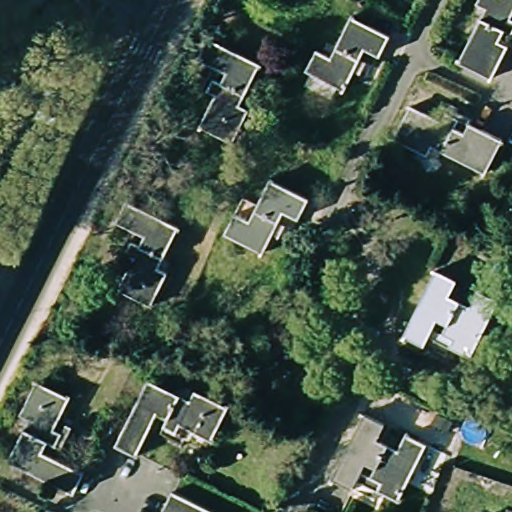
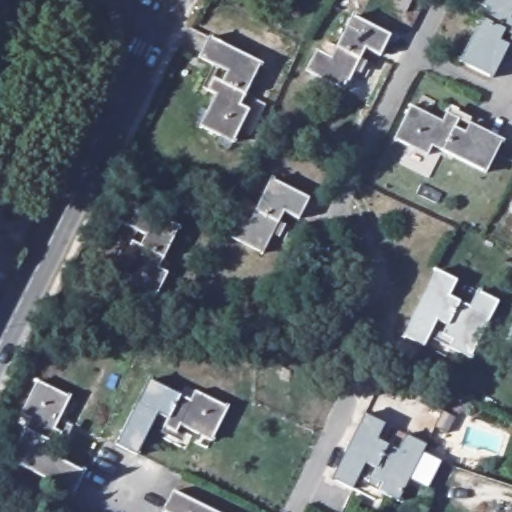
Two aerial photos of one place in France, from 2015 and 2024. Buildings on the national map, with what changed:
unchanged [(488,11),(478,6),(481,0),(512,0),(512,21),(511,23),(512,24),(512,36),(507,33),(501,44),(509,48),(493,82),(461,65),(488,11)]
unchanged [(317,50),(337,59),(358,17),(391,34),(381,55),(367,48),(345,90),(307,71),(317,50)]
unchanged [(262,62),(242,103),(251,108),(235,140),(202,124),(217,94),(209,89),(215,78),(222,82),(228,70),(200,56),(210,36),(262,62)]
unchanged [(503,141),(487,172),(434,146),(430,155),(397,139),(413,106),(445,122),(449,113),(459,118),(455,126),(465,132),(469,123),(503,141)]
unchanged [(236,214),(254,223),(276,182),(309,199),(299,220),(285,213),(264,253),(225,234),(236,214)]
unchanged [(120,286),(135,256),(126,251),(132,241),(140,244),(145,234),(117,220),(128,200),(179,226),(159,266),(169,271),(152,303),(120,286)]
unchanged [(471,358),(451,348),(456,338),(446,332),(448,325),(439,320),(427,345),(406,335),(438,271),(438,272),(459,282),(451,297),(461,302),(468,286),(499,302),(471,358)]
unchanged [(149,381),(191,402),(196,393),(229,409),(211,442),(180,427),(175,436),(162,429),(167,421),(157,416),(137,455),(134,453),(117,445),(149,381)]
unchanged [(74,398),(58,430),(66,434),(60,445),(55,443),(50,452),(91,473),(80,494),(15,461),(16,459),(36,419),(26,413),(42,382),(74,398)]
unchanged [(344,459),(366,417),(386,427),(379,440),(388,445),(395,432),(427,448),(398,504),(378,494),(383,485),(372,478),(375,471),(366,466),(353,492),(333,481),(332,481),(344,459)]
unchanged [(172,494),(174,491),(214,512),(163,512),(172,494)]

